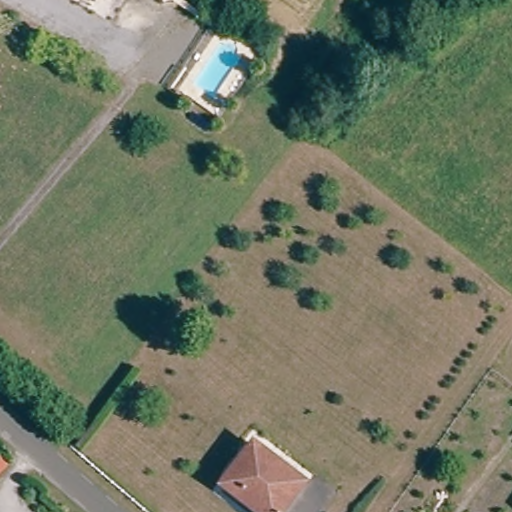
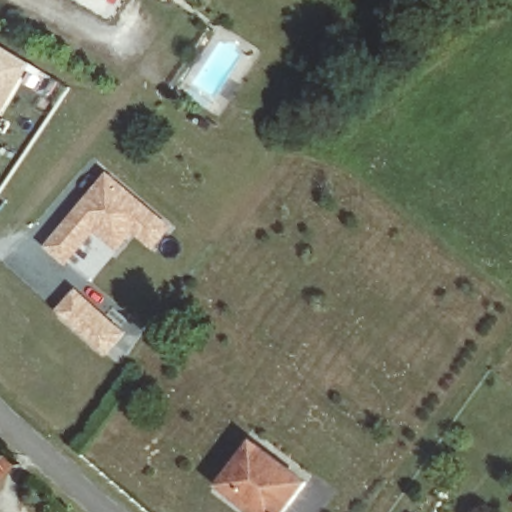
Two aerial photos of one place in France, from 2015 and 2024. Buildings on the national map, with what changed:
new [(3,44),(30,61),(1,111),(0,111),(0,49),(3,44)]
new [(175,229),(156,250),(136,235),(120,252),(97,233),(69,267),(47,247),(110,172),(175,229)]
new [(129,336),(110,357),(58,311),(78,290),(129,336)]
unchanged [(306,480),(283,512),(273,512),(245,490),(240,497),(223,485),(255,442),(306,480)]

